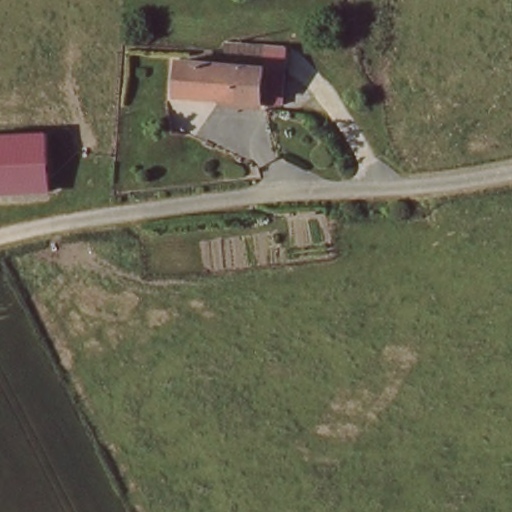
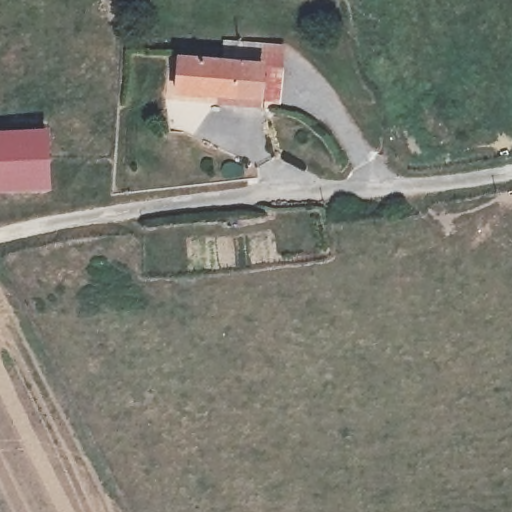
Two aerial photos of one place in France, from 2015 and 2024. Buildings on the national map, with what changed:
unchanged [(280,101),(261,100),(178,96),(178,59),(221,62),(225,38),(282,42),(280,101)]
unchanged [(48,135),(47,189),(34,189),(0,189),(0,137),(34,136),(48,135)]

